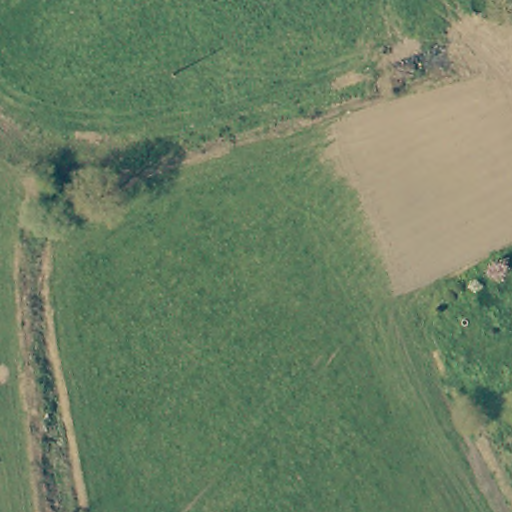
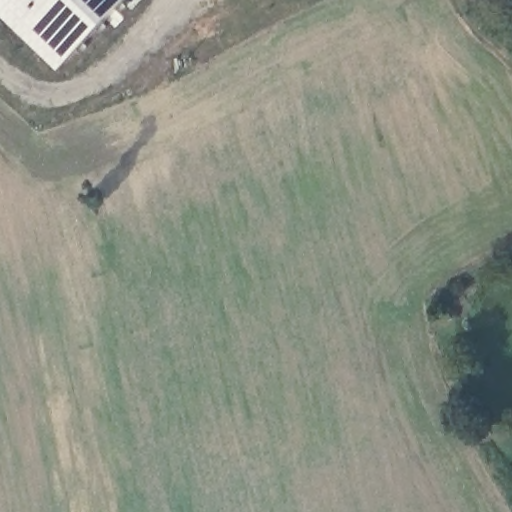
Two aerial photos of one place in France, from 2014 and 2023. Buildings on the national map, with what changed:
new [(59,72),(0,15),(0,0),(125,0),(59,72)]

